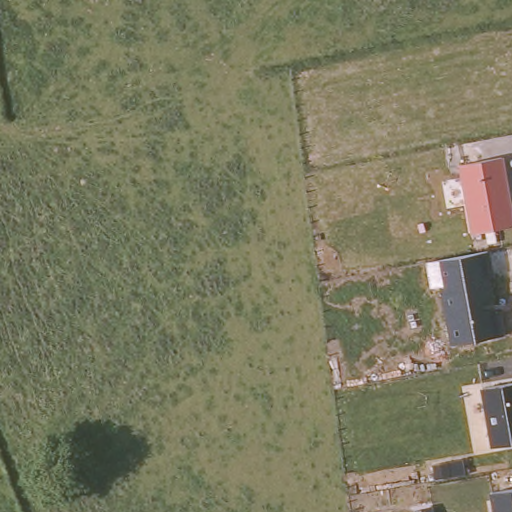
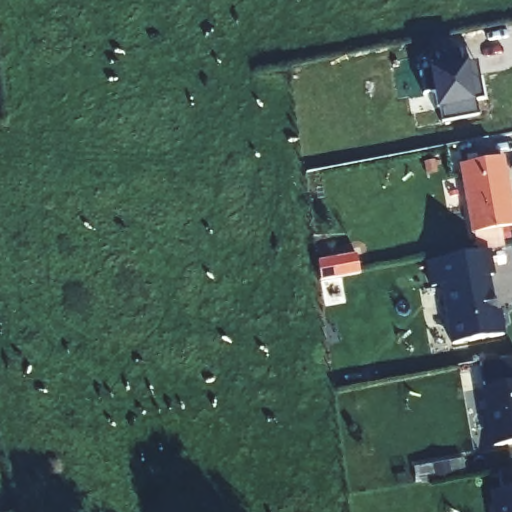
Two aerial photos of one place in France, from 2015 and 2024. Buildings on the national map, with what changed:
new [(475,75),(479,74),(483,97),(475,99),(478,114),(442,121),(440,108),(437,109),(434,90),(424,92),(420,70),(472,60),(475,75)]
unchanged [(512,200),(512,226),(471,232),(460,164),(504,156),(512,200)]
unchanged [(489,250),(497,306),(502,305),(505,333),(449,342),(440,286),(430,289),(427,262),(489,250)]
unchanged [(512,442),(490,446),(480,387),(512,382),(512,442)]
unchanged [(512,512),(492,512),(489,492),(512,488),(512,512)]

